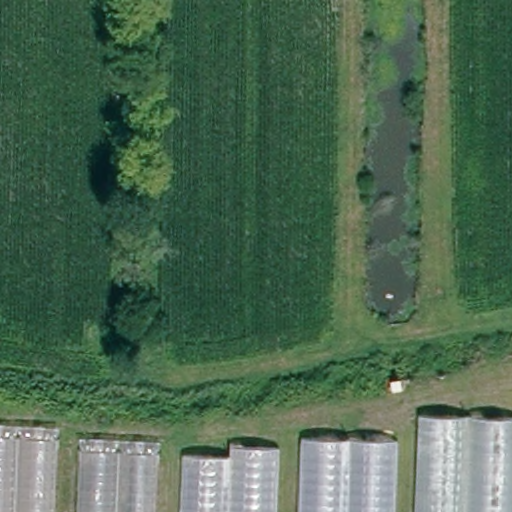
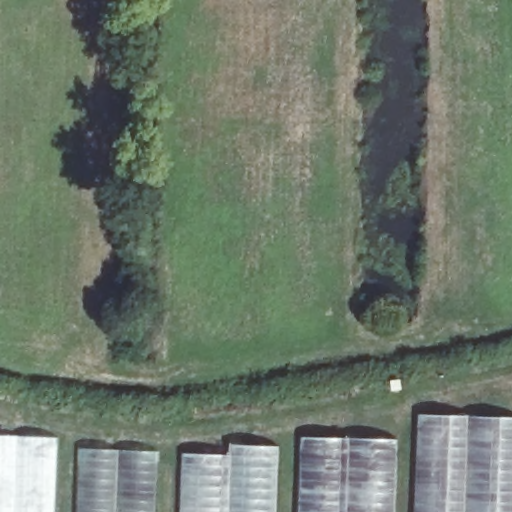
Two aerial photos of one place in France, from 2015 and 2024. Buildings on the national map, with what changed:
unchanged [(512,415),(512,481),(510,512),(409,512),(415,409),(512,415)]
unchanged [(0,512),(0,421),(57,424),(54,512),(0,512)]
unchanged [(398,438),(395,512),(297,512),(302,433),(398,438)]
unchanged [(282,443),(279,512),(237,512),(241,441),(282,443)]
unchanged [(222,449),(219,512),(177,512),(181,447),(222,449)]
unchanged [(157,451),(154,512),(77,512),(79,448),(157,451)]

